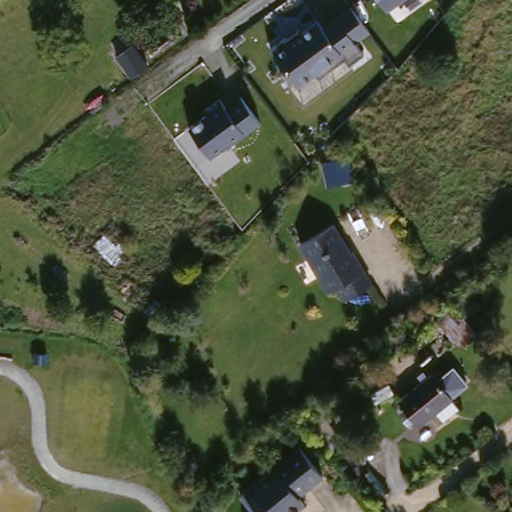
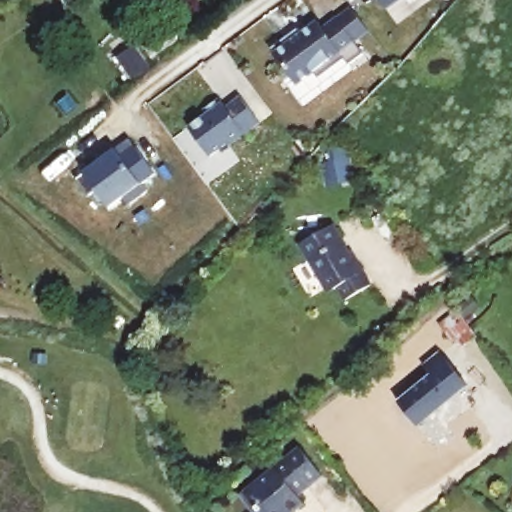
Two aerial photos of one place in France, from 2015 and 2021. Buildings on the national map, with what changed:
unchanged [(385,10),(378,0),(399,0),(385,10)]
unchanged [(347,64),(343,58),(317,78),(312,72),(295,84),(269,49),(285,37),(296,28),(300,33),(316,21),(321,28),(336,18),(350,7),(361,23),(367,31),(353,41),(362,53),(347,64)]
new [(133,45),(148,66),(132,78),(117,57),(133,45)]
unchanged [(188,127),(204,114),(202,109),(218,98),(225,106),(240,96),(258,124),(229,147),(227,142),(210,156),(188,127)]
new [(96,193),(87,197),(75,179),(84,173),(115,150),(131,140),(155,174),(141,185),(146,193),(129,207),(122,199),(109,210),(96,193)]
unchanged [(361,268),(364,266),(374,282),(348,298),(340,284),(331,289),(302,244),(334,225),(361,268)]
unchanged [(476,333),(465,343),(461,338),(456,341),(443,324),(458,311),(476,333)]
unchanged [(393,400),(428,373),(433,380),(448,367),(463,385),(445,399),(453,408),(437,420),(430,411),(412,424),(393,400)]
unchanged [(298,484),(305,492),(281,512),(248,512),(249,508),(256,502),(242,485),(300,437),(323,465),(298,484)]

